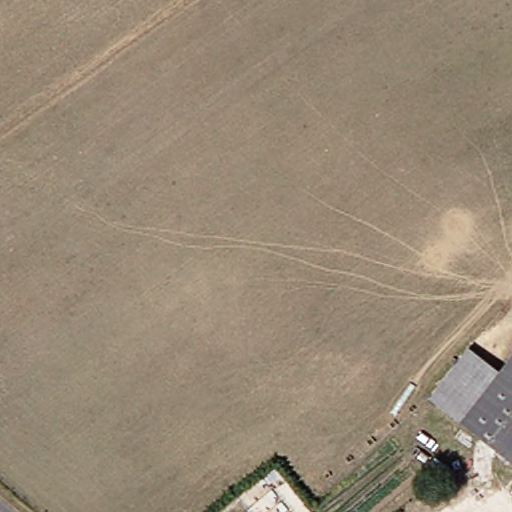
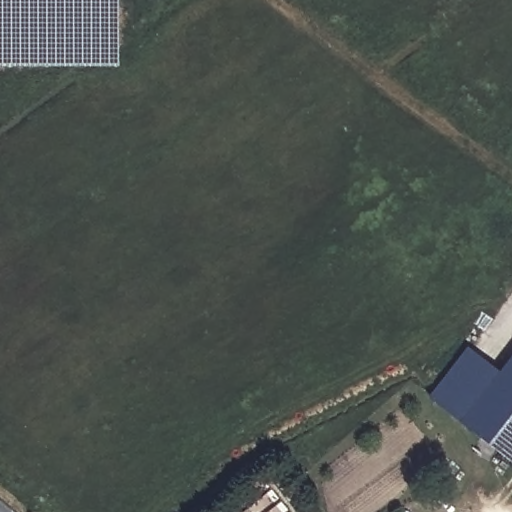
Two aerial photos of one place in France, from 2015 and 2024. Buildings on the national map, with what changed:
new [(0,65),(0,0),(118,0),(118,65),(0,65)]
unchanged [(470,427),(436,404),(466,354),(504,377),(470,427)]
unchanged [(512,366),(512,455),(470,427),(504,377),(512,366)]
demolished [(411,510),(412,512),(409,512),(411,510)]

